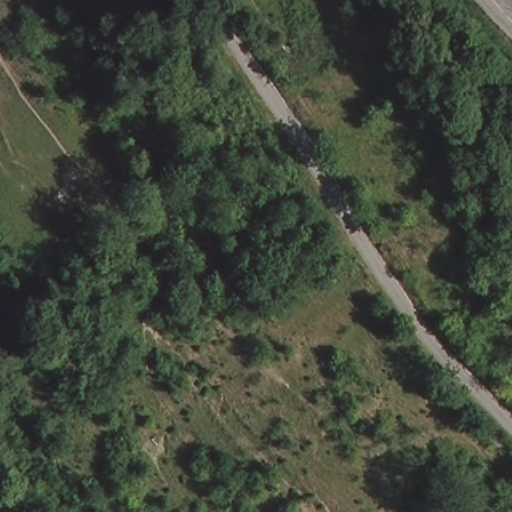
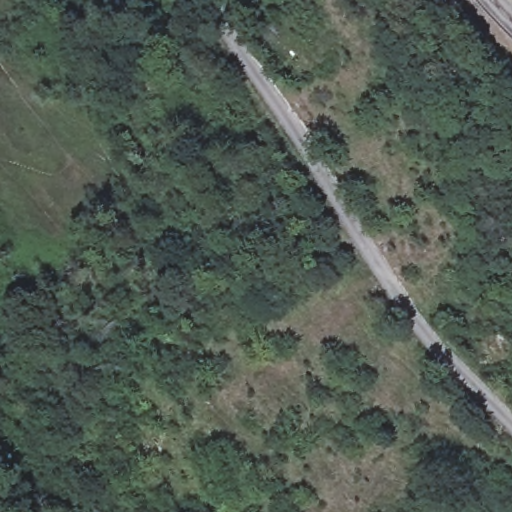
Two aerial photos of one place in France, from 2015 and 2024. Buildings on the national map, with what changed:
[]

